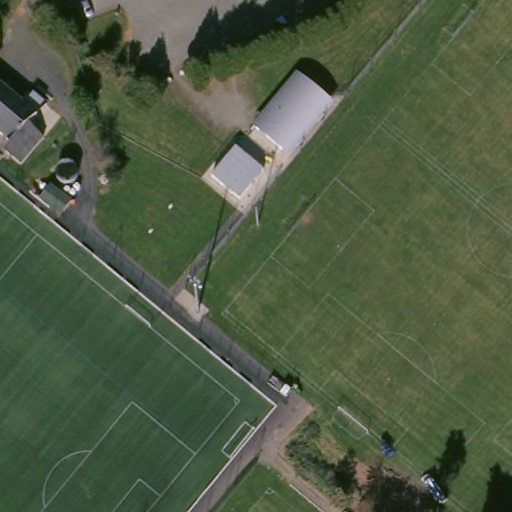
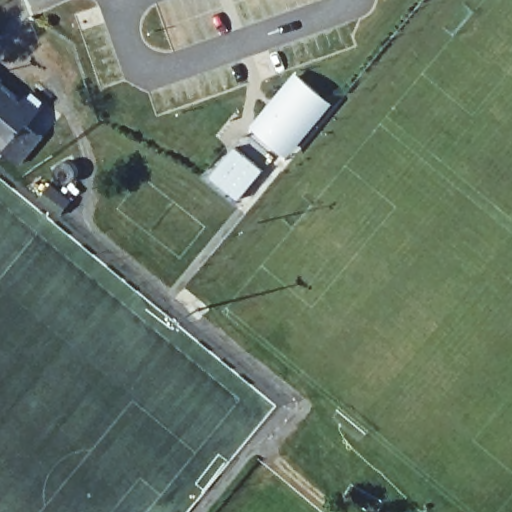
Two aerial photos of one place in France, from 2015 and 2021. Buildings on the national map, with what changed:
unchanged [(303,71),(329,93),(286,144),(260,122),(303,71)]
unchanged [(4,78),(0,83),(30,106),(40,93),(55,105),(37,127),(51,138),(30,166),(12,152),(19,144),(0,130),(0,75),(4,78)]
unchanged [(237,139),(272,165),(248,197),(212,171),(237,139)]

